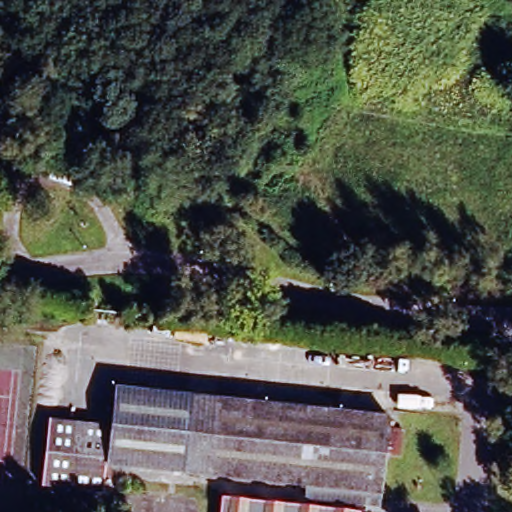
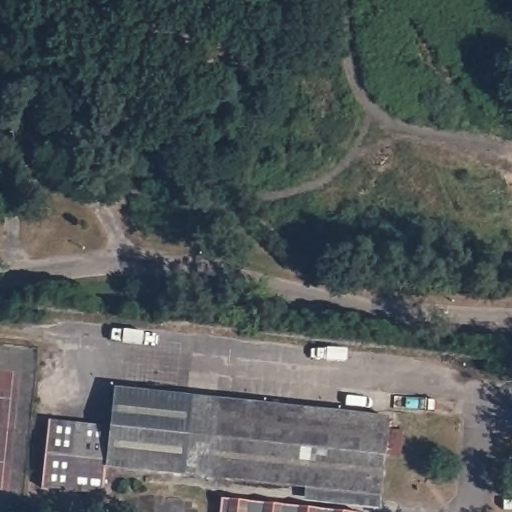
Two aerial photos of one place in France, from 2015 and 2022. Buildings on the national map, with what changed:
unchanged [(388,416),(379,495),(304,487),(106,467),(110,425),(115,387),(388,416)]
unchanged [(103,493),(41,487),(49,419),(110,425),(106,467),(103,493)]
unchanged [(378,508),(302,501),(304,487),(379,495),(378,508)]
unchanged [(350,512),(218,512),(219,498),(350,512)]

